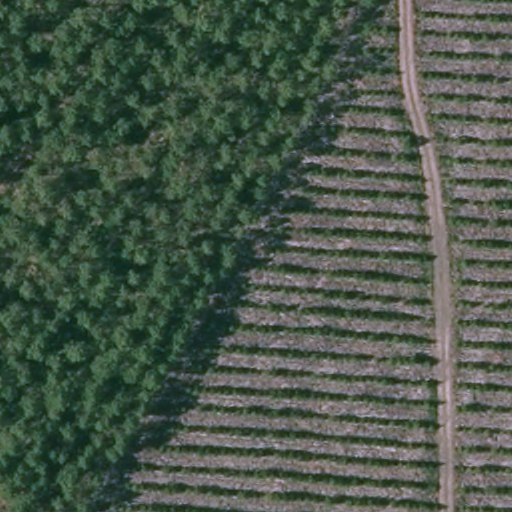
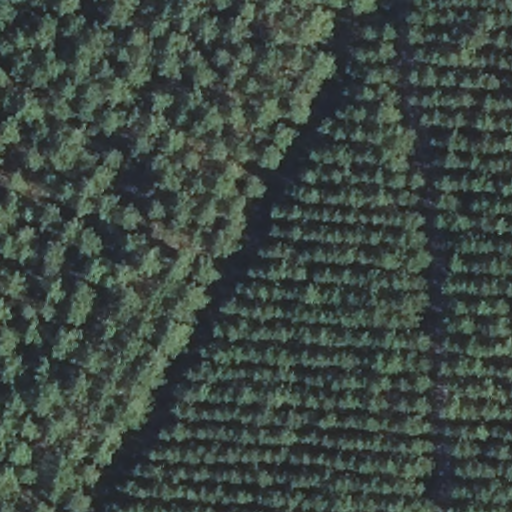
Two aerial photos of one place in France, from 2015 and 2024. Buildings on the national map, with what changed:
[]

